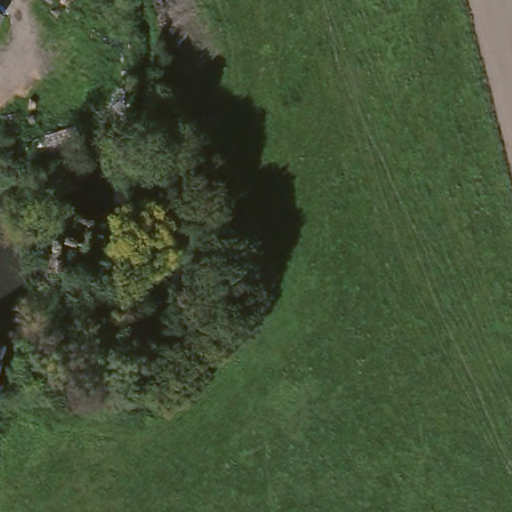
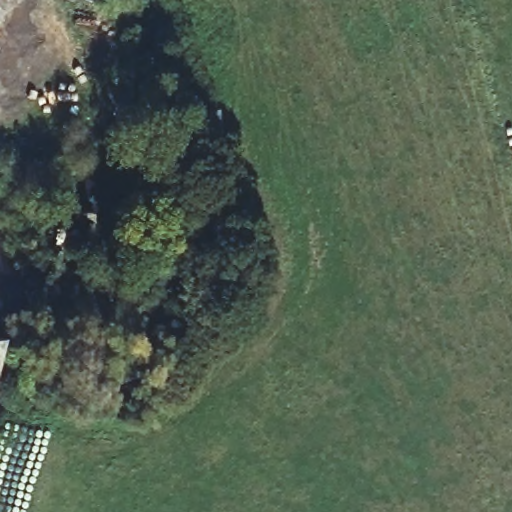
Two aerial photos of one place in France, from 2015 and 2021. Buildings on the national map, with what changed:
unchanged [(0,23),(0,14),(4,17),(0,23)]
unchanged [(8,345),(0,374),(0,343),(8,345)]

